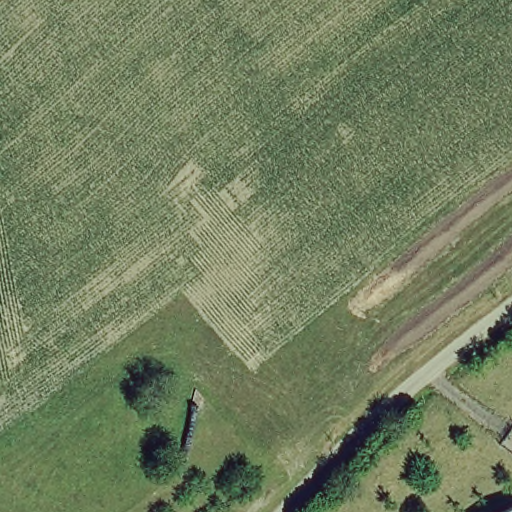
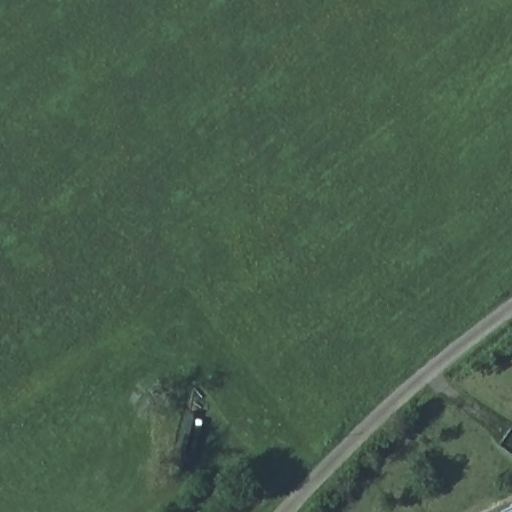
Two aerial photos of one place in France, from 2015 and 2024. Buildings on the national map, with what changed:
unchanged [(512,507),(512,512),(503,512),(512,507)]

